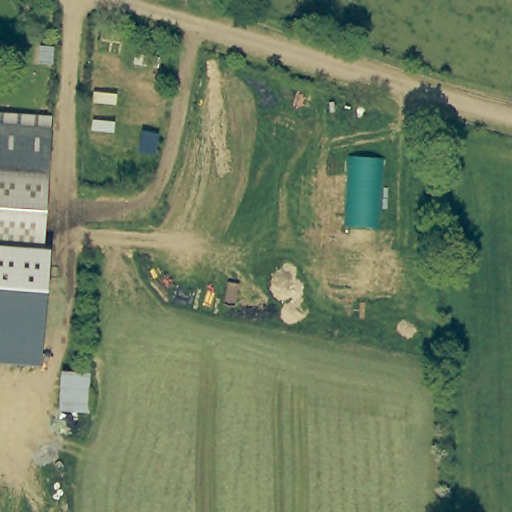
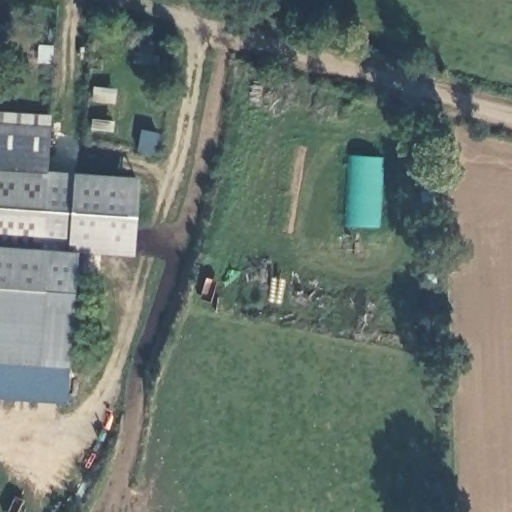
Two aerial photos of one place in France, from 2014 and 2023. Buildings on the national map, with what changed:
unchanged [(0,126),(0,113),(52,117),(51,129),(0,126)]
unchanged [(49,182),(0,180),(0,126),(51,129),(49,182)]
new [(352,155),(387,157),(381,226),(345,225),(352,155)]
new [(134,257),(80,255),(68,402),(0,398),(0,365),(40,368),(48,252),(42,252),(49,182),(49,172),(78,175),(140,177),(134,257)]
unchanged [(0,365),(0,180),(49,182),(42,252),(48,252),(40,368),(0,365)]

